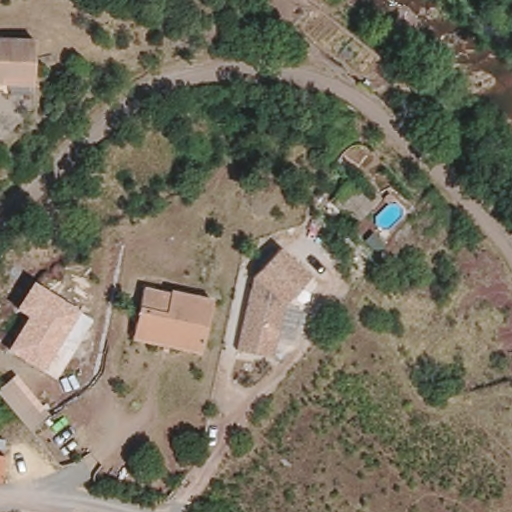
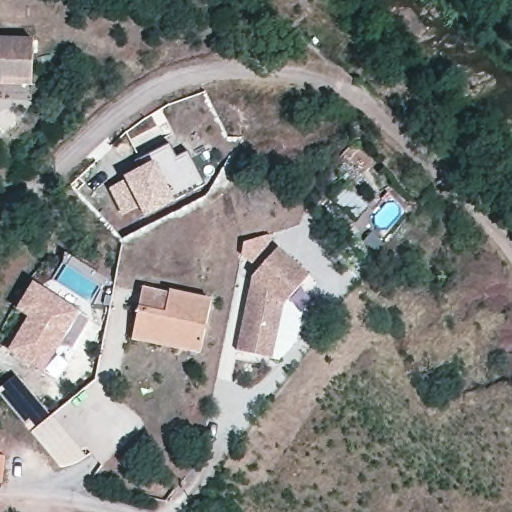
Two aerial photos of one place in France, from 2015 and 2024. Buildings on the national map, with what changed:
unchanged [(0,83),(0,38),(34,40),(32,77),(32,85),(1,84),(0,83)]
new [(146,216),(141,206),(123,215),(109,188),(127,179),(153,164),(150,155),(170,144),(177,157),(188,152),(205,184),(175,200),(146,216)]
new [(242,241),(268,234),(272,241),(253,263),(240,257),(242,241)]
unchanged [(280,306),(269,356),(237,348),(251,279),(276,249),(306,275),(280,306)]
unchanged [(9,351),(28,317),(18,309),(34,282),(81,312),(43,372),(9,351)]
unchanged [(132,327),(139,290),(162,295),(164,290),(206,297),(195,353),(176,350),(130,342),(132,327)]
unchanged [(47,419),(28,435),(0,403),(0,390),(12,380),(47,419)]
new [(47,419),(52,415),(86,457),(60,466),(31,432),(47,419)]
unchanged [(0,478),(0,452),(2,452),(1,478),(0,478)]

